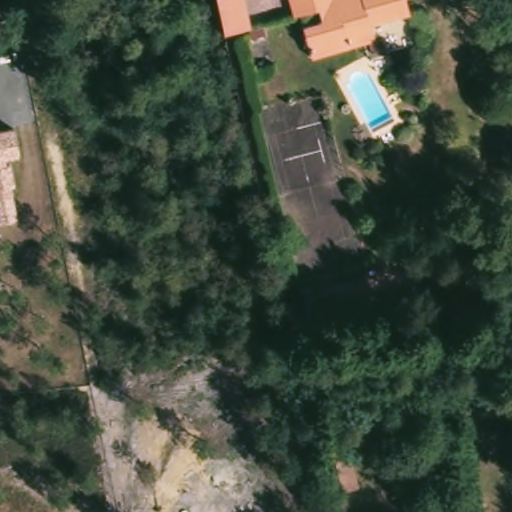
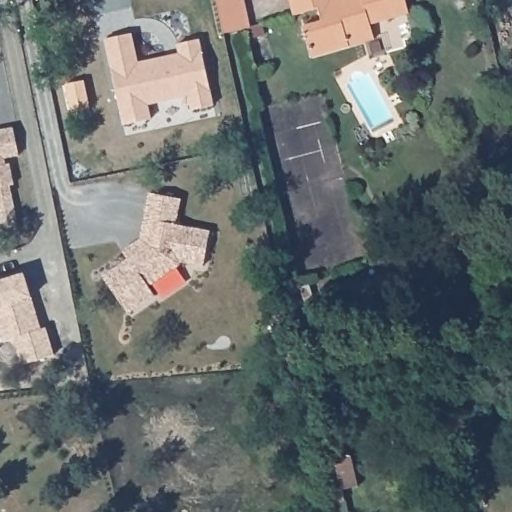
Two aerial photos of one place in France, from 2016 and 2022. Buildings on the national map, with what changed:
unchanged [(250,0),(256,28),(228,34),(221,0),(250,0)]
unchanged [(307,62),(298,31),(317,26),(314,13),(289,20),(283,0),(399,0),(403,17),(364,29),(368,44),(345,51),(307,62)]
new [(104,39),(133,32),(139,61),(179,53),(176,43),(200,38),(215,106),(190,111),(187,97),(149,105),(152,119),(121,123),(104,39)]
unchanged [(13,128),(19,157),(9,159),(14,185),(9,187),(12,196),(16,220),(0,223),(0,131),(13,128)]
new [(102,276),(128,259),(121,251),(140,237),(150,193),(181,198),(177,224),(210,230),(203,266),(180,262),(148,285),(155,294),(129,314),(102,276)]
unchanged [(321,479),(337,475),(335,462),(350,458),(357,488),(341,491),(343,502),(327,505),(321,479)]

